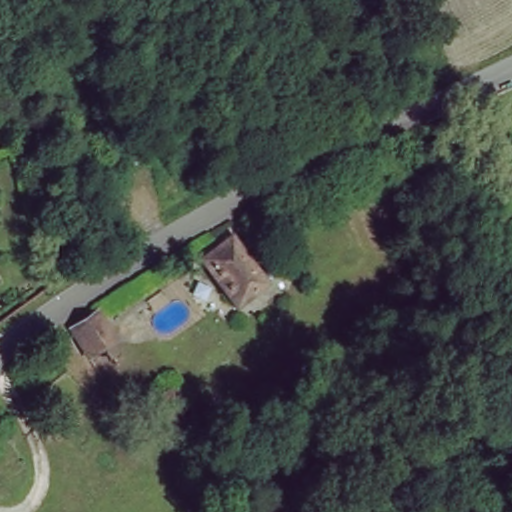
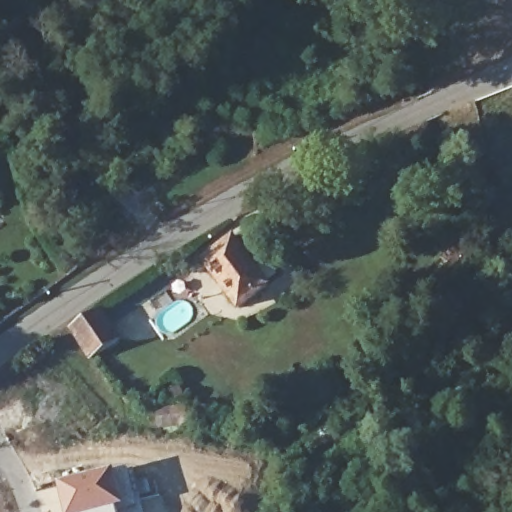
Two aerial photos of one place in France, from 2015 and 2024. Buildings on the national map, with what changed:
unchanged [(238,306),(201,257),(231,235),(267,285),(238,306)]
unchanged [(123,341),(99,368),(69,327),(98,304),(123,341)]
unchanged [(189,421),(160,424),(158,404),(188,401),(189,421)]
new [(120,471),(128,509),(121,511),(121,512),(65,512),(58,485),(120,471)]

